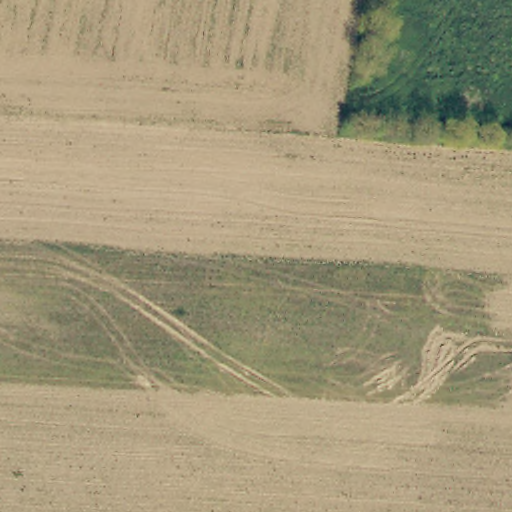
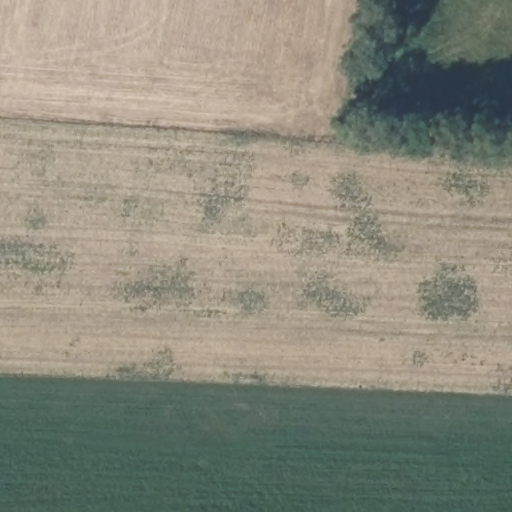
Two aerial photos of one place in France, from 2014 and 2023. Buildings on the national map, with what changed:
[]

